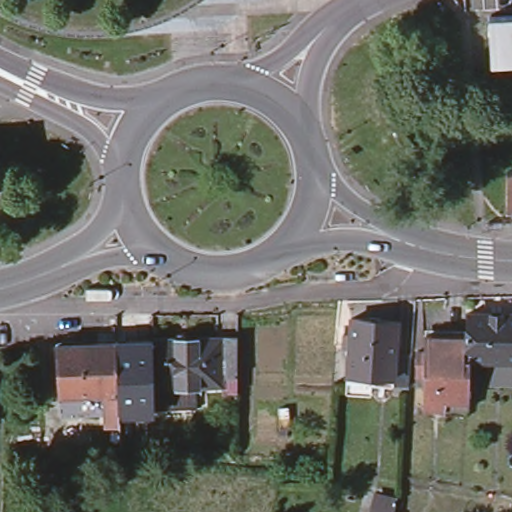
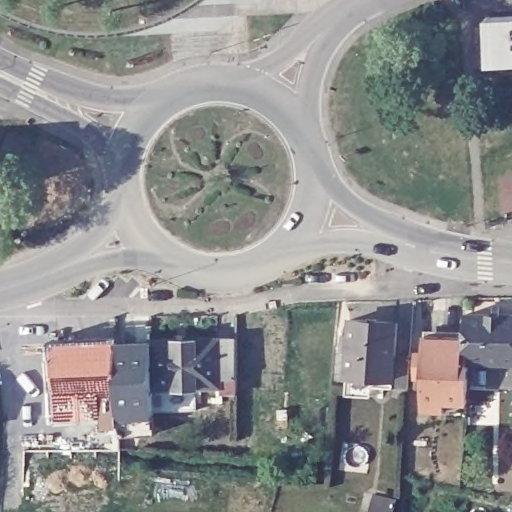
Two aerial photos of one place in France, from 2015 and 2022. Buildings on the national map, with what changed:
unchanged [(512,63),(491,64),(490,22),(512,21),(512,63)]
unchanged [(497,176),(505,174),(512,172),(512,205),(497,209),(497,176)]
unchanged [(422,407),(422,387),(415,386),(415,352),(423,352),(423,334),(464,334),(466,334),(466,311),(512,313),(512,359),(468,359),(468,375),(467,400),(460,400),(445,400),(445,407),(422,407)]
unchanged [(345,372),(348,317),(375,318),(370,373),(345,372)]
unchanged [(407,385),(392,384),(392,374),(370,373),(375,318),(396,319),(393,353),(410,353),(407,385)]
unchanged [(220,375),(220,383),(188,384),(155,385),(150,385),(150,337),(156,337),(188,336),(220,335),(236,335),(236,356),(235,375),(220,375)]
unchanged [(58,414),(54,343),(80,341),(115,340),(117,423),(105,423),(105,412),(85,413),(58,414)]
unchanged [(395,512),(370,512),(375,489),(398,497),(395,512)]

